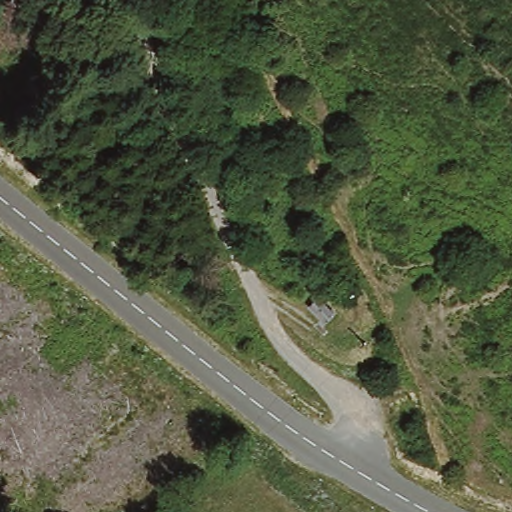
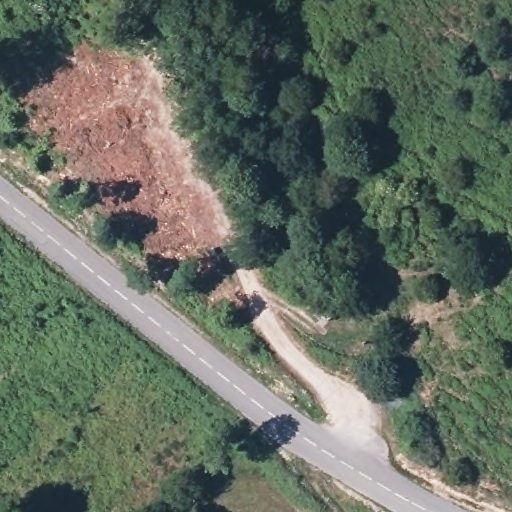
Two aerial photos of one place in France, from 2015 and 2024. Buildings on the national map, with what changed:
unchanged [(338,315),(325,328),(313,315),(327,303),(338,315)]

